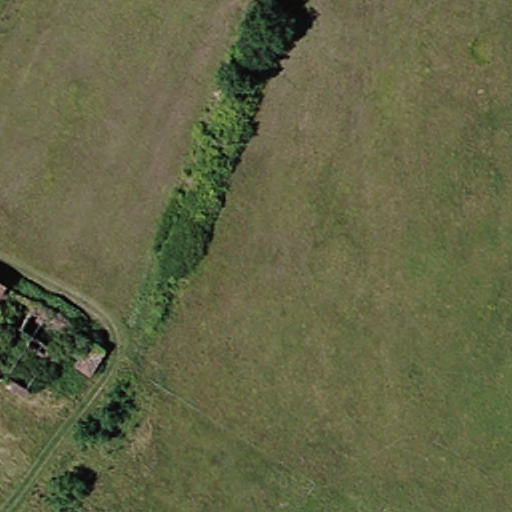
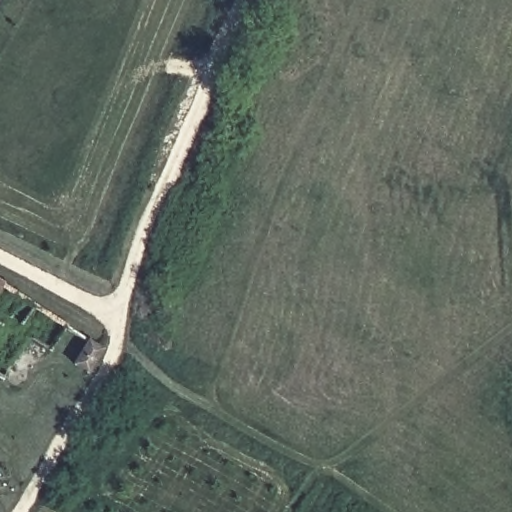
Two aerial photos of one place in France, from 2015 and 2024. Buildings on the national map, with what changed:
unchanged [(0,282),(2,283),(0,287),(0,282)]
unchanged [(91,371),(76,365),(90,340),(102,347),(91,371)]

